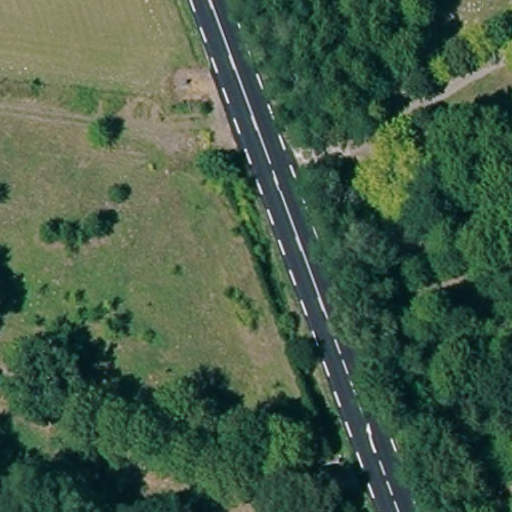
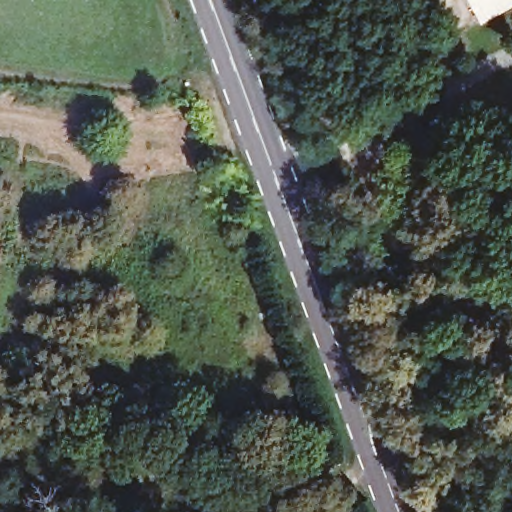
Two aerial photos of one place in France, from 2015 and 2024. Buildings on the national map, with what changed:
new [(465,0),(512,0),(512,7),(480,25),(465,0)]

